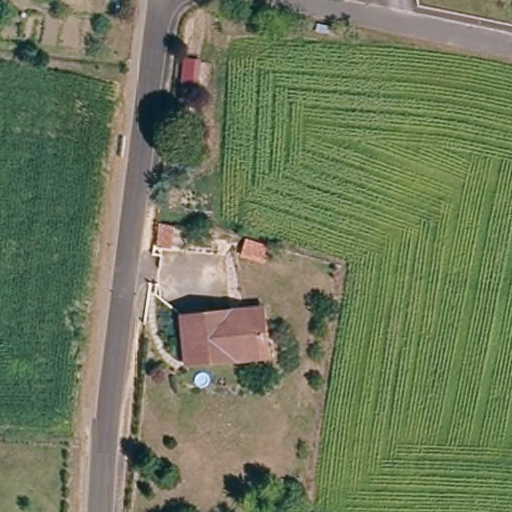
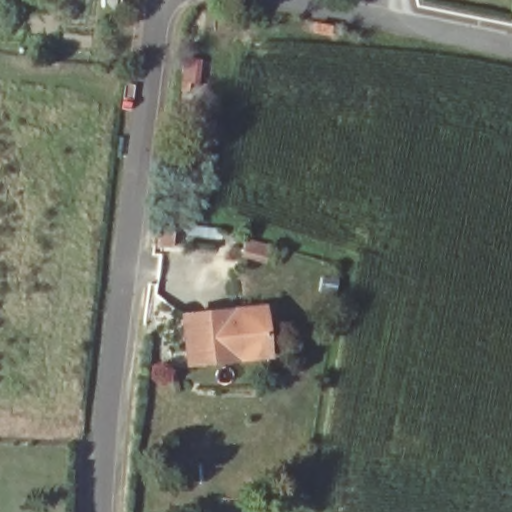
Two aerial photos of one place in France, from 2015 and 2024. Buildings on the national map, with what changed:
unchanged [(164,93),(173,94),(180,95),(177,112),(170,111),(161,110),(164,93)]
unchanged [(262,309),(266,343),(226,348),(227,360),(188,364),(183,318),(262,309)]

